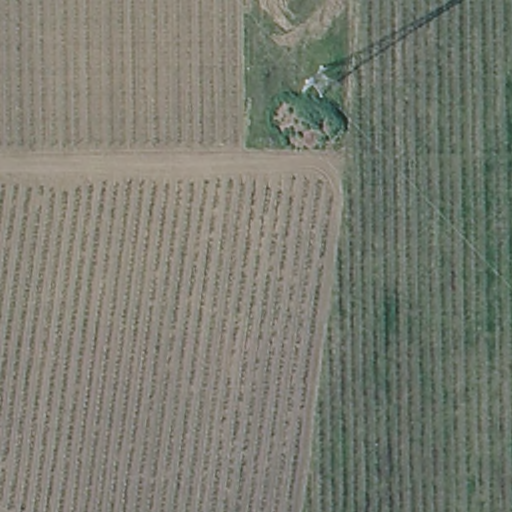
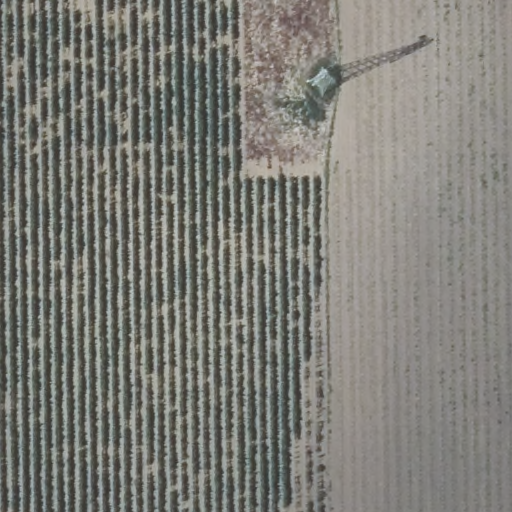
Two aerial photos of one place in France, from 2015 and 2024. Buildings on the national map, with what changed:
[]

